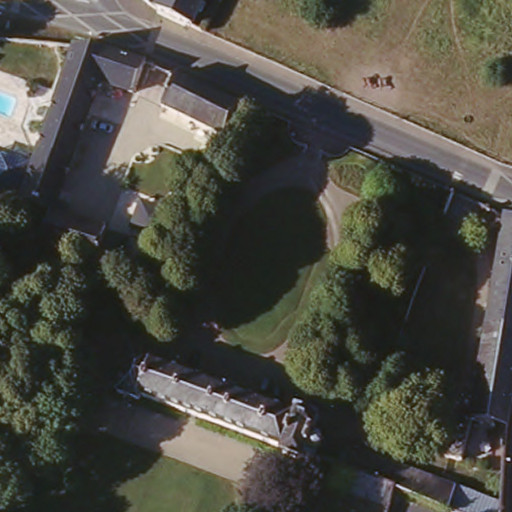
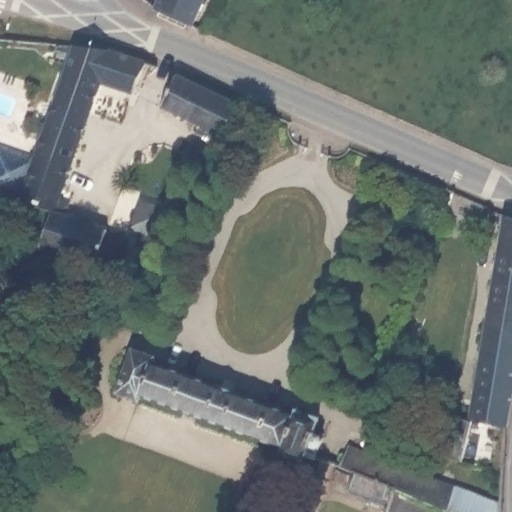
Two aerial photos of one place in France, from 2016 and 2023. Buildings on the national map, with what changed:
unchanged [(159,0),(205,0),(189,35),(152,16),(159,0)]
unchanged [(78,44),(111,48),(141,60),(143,54),(157,60),(155,66),(145,62),(134,91),(112,83),(106,101),(93,97),(56,209),(119,229),(111,256),(101,253),(98,260),(97,262),(41,243),(52,209),(26,201),(78,44)]
unchanged [(164,109),(178,79),(241,108),(227,140),(164,109)]
unchanged [(506,217),(512,219),(512,405),(507,430),(472,423),(463,465),(447,459),(456,417),(468,419),(495,281),(506,217)]
unchanged [(130,272),(131,269),(139,252),(151,257),(143,275),(130,272)]
unchanged [(296,454),(293,457),(272,448),(273,445),(135,393),(132,398),(109,389),(126,346),(147,354),(147,358),(285,411),(287,407),(309,415),(303,431),(315,435),(307,456),(317,461),(308,486),(298,482),(307,458),(296,454)]
unchanged [(351,472),(337,466),(347,442),(352,444),(452,483),(442,508),(390,487),(385,505),(343,489),(351,472)]
unchanged [(499,501),(498,512),(454,512),(442,508),(452,483),(499,501)]

